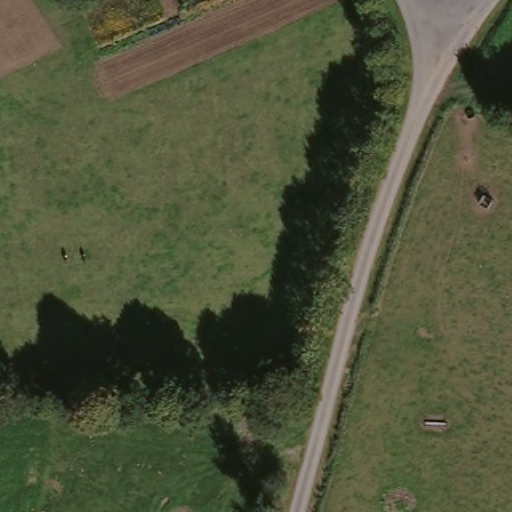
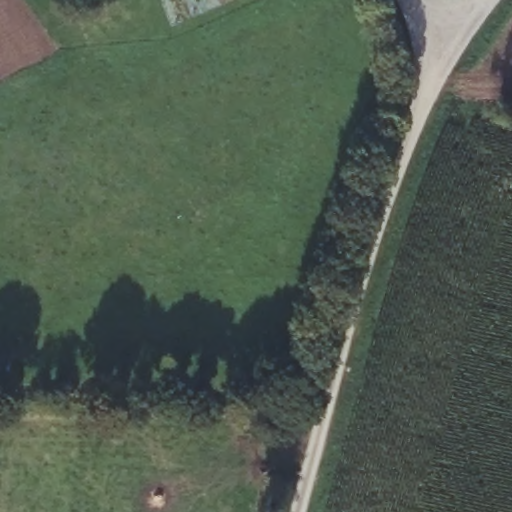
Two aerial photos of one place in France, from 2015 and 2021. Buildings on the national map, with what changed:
unchanged [(237,403),(238,411),(267,409),(268,431),(239,433),(239,438),(199,440),(197,405),(237,403)]

